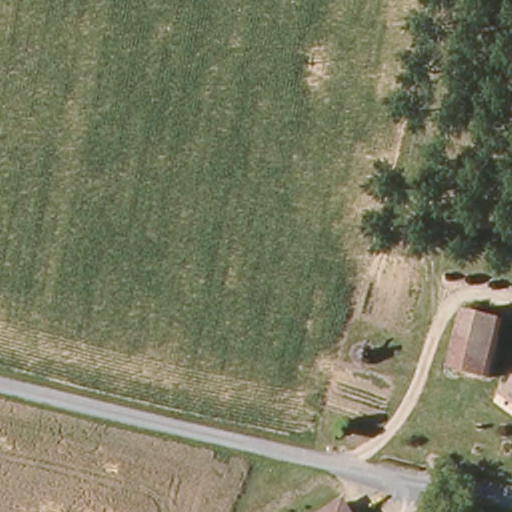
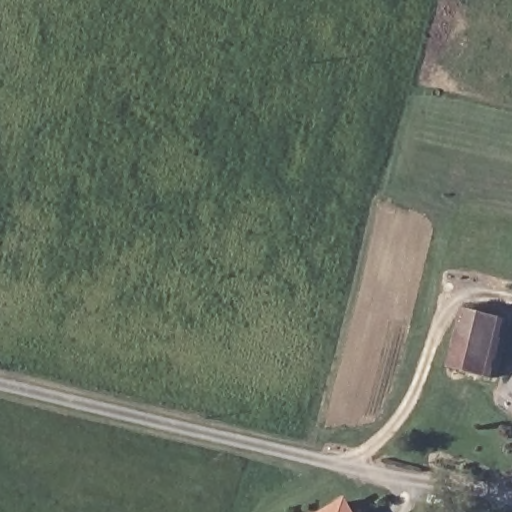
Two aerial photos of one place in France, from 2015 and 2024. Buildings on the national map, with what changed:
unchanged [(468,313),(503,318),(493,376),(458,372),(468,313)]
unchanged [(353,512),(337,512),(350,506),(353,512)]

